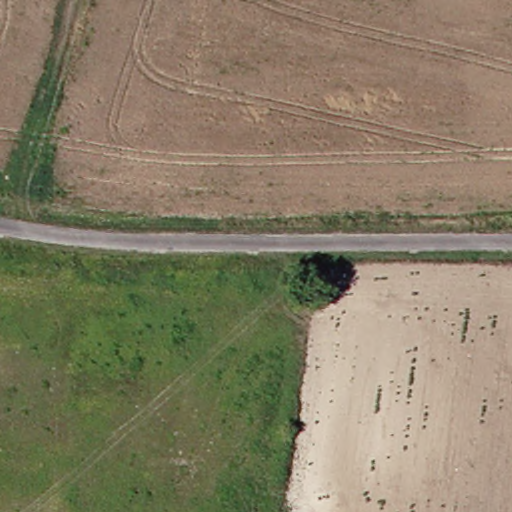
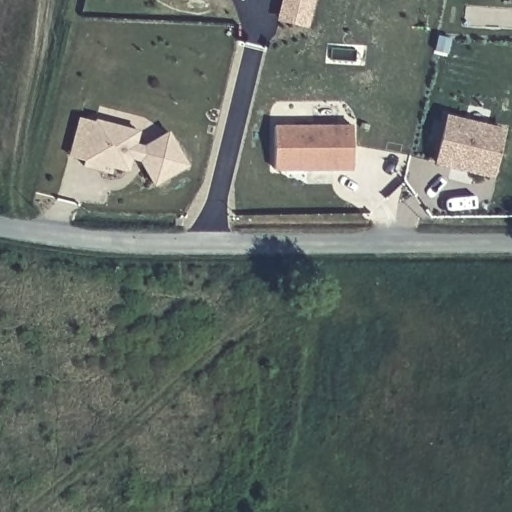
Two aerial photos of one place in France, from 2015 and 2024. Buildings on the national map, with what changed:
new [(277,20),(282,0),(316,0),(309,28),(277,20)]
new [(451,115),(507,128),(496,174),(440,161),(451,115)]
new [(99,120),(140,131),(137,144),(147,146),(170,132),(189,165),(156,184),(142,159),(134,157),(130,170),(114,166),(112,172),(87,165),(99,120)]
new [(277,124),(356,125),(355,168),(276,167),(277,124)]

